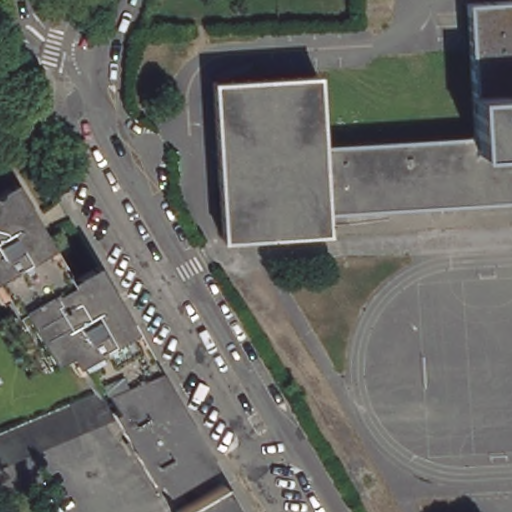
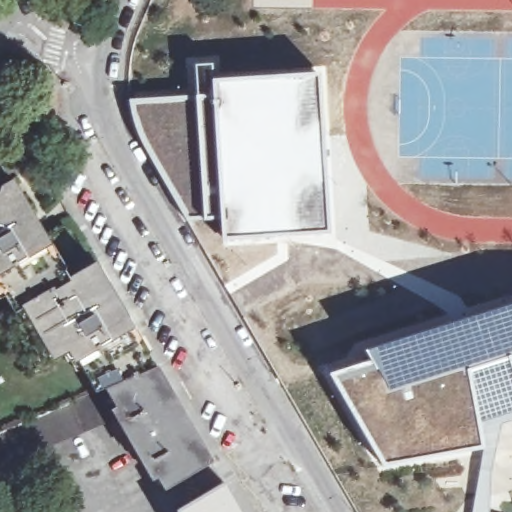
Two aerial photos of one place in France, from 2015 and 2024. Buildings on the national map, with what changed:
demolished [(502,0),(512,0),(512,91),(474,94),(468,3),(502,0)]
unchanged [(326,202),(329,232),(224,239),(214,81),(319,74),(324,145),(326,202)]
unchanged [(512,91),(512,149),(478,152),(477,151),(476,135),(474,94),(512,91)]
demolished [(344,201),(326,202),(324,145),(476,135),(477,151),(478,152),(512,149),(512,190),(344,201)]
unchanged [(57,408),(64,404),(66,404),(81,397),(88,394),(89,394),(96,391),(70,345),(69,344),(33,366),(13,329),(5,317),(18,308),(0,276),(0,188),(1,188),(15,180),(35,214),(48,237),(64,264),(70,265),(71,265),(77,275),(99,263),(119,297),(132,319),(148,348),(154,349),(161,362),(183,399),(191,411),(197,423),(206,437),(217,458),(171,485),(154,458),(149,461),(139,443),(136,437),(125,419),(131,416),(126,409),(102,420),(5,461),(0,449),(0,431),(14,425),(39,415),(43,413),(57,408)]
new [(369,364),(364,351),(512,302),(512,409),(476,422),(481,446),(384,463),(331,373),(369,364)]
unchanged [(177,509),(223,482),(224,484),(239,509),(241,512),(178,512),(177,509)]

